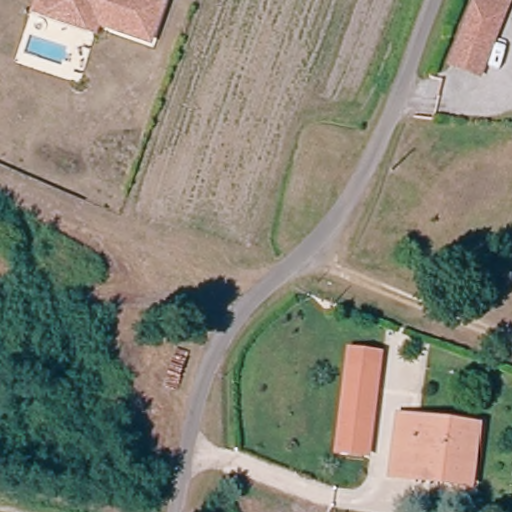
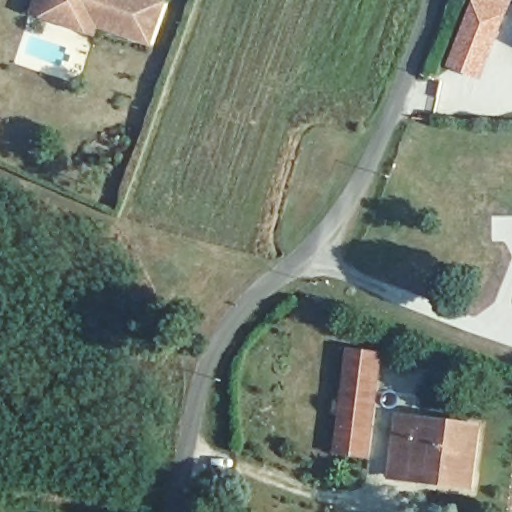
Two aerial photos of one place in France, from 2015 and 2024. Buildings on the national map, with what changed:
unchanged [(40,0),(156,0),(164,3),(150,41),(98,22),(97,26),(95,31),(36,11),(40,0)]
unchanged [(447,68),(473,0),(512,0),(512,4),(481,82),(447,68)]
unchanged [(343,445),(353,361),(355,345),(382,348),(380,365),(371,448),(343,445)]
unchanged [(473,492),(455,489),(415,482),(396,480),(405,428),(405,421),(420,423),(450,428),(484,433),(473,492)]

